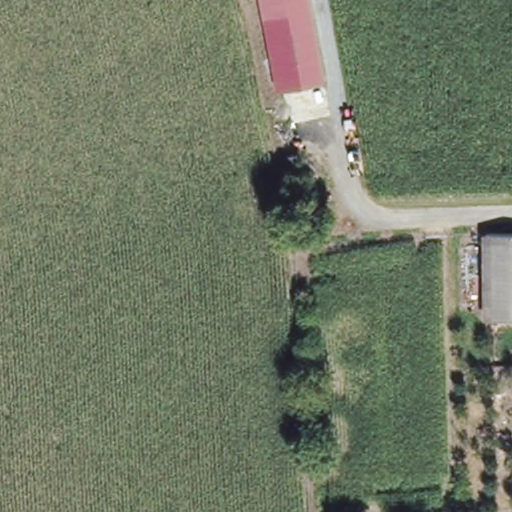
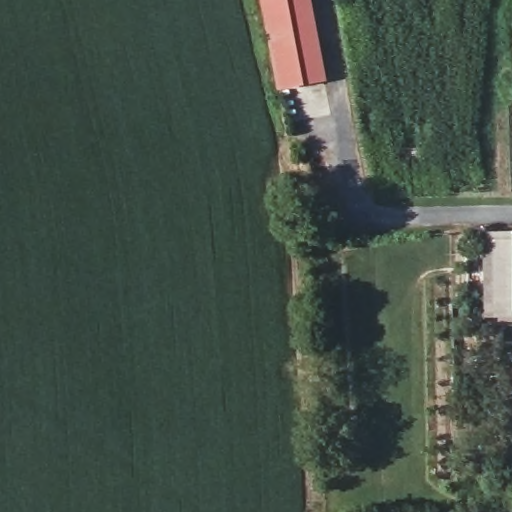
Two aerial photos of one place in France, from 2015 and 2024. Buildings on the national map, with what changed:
unchanged [(272,98),(254,0),(310,0),(327,88),(272,98)]
unchanged [(485,229),(512,226),(512,313),(491,315),(485,229)]

